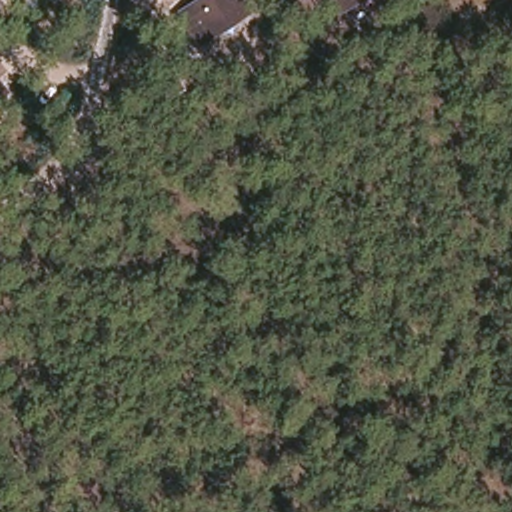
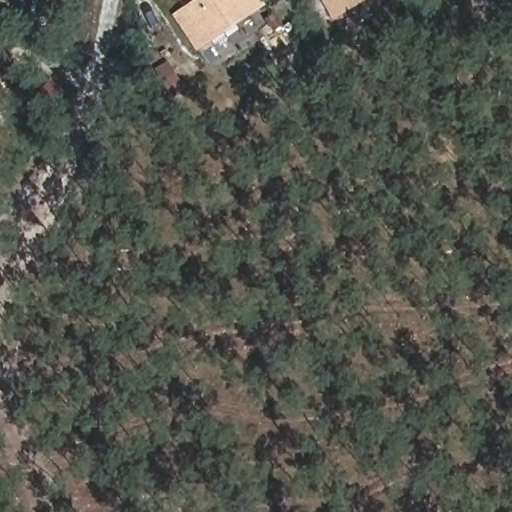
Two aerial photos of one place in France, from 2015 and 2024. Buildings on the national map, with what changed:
unchanged [(192,51),(184,40),(171,19),(183,11),(199,0),(232,0),(237,9),(243,17),(205,42),(192,51)]
unchanged [(321,0),(348,0),(341,4),(328,12),(321,0)]
unchanged [(0,104),(0,77),(13,94),(0,104)]

